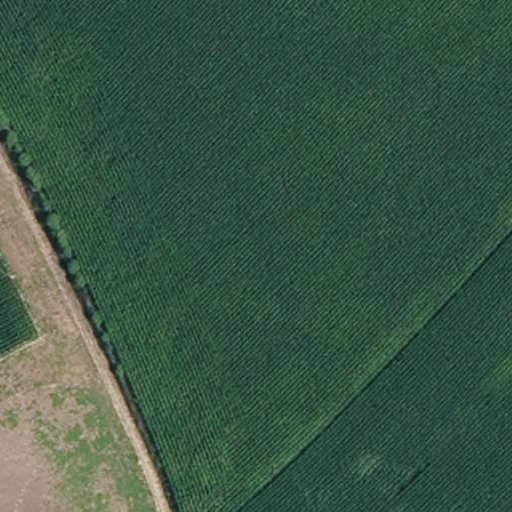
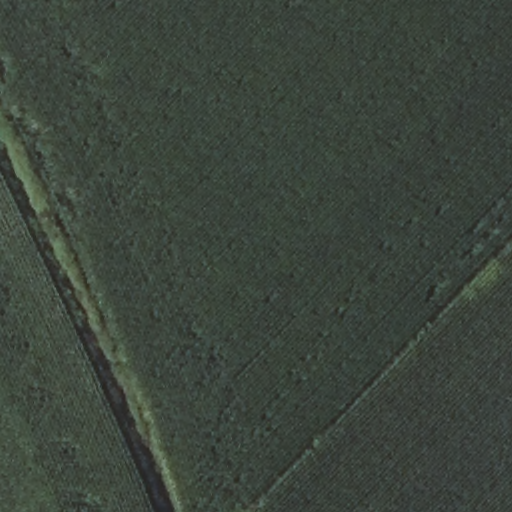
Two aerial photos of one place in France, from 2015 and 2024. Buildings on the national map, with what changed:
[]

